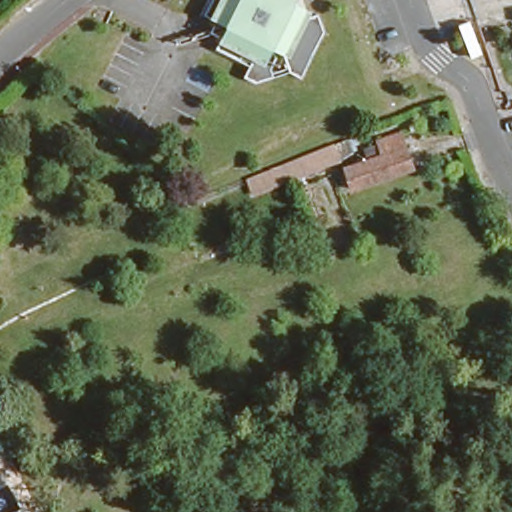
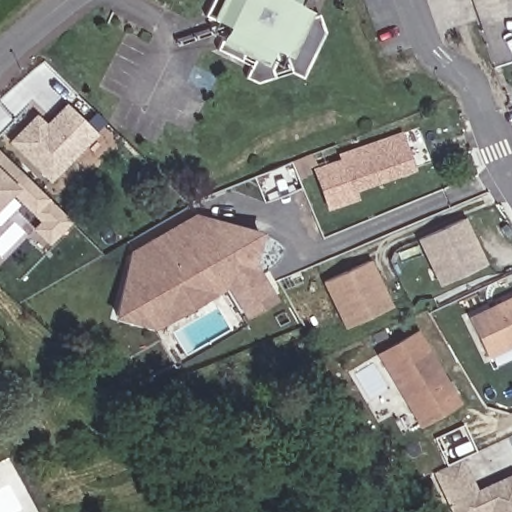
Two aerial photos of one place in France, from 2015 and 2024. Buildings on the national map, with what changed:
unchanged [(250,78),(242,69),(243,56),(212,39),(219,15),(202,10),(206,0),(319,0),(330,26),(297,74),(279,66),(273,73),(250,78)]
new [(49,126),(70,104),(102,135),(54,182),(7,142),(36,114),(49,126)]
demolished [(361,188),(351,168),(390,151),(385,138),(402,128),(417,162),(361,188)]
new [(342,159),(341,154),(403,132),(417,170),(357,191),(361,198),(329,209),(313,167),(342,159)]
demolished [(340,159),(252,192),(244,172),(332,136),(340,159)]
new [(56,242),(38,227),(47,218),(43,220),(17,194),(0,212),(0,153),(74,222),(56,242)]
new [(198,214),(268,232),(261,261),(282,299),(252,316),(232,287),(161,329),(120,315),(129,253),(198,214)]
new [(417,239),(466,216),(486,261),(438,283),(417,239)]
new [(323,283),(371,259),(392,304),(343,327),(323,283)]
new [(512,296),(512,346),(487,357),(468,316),(512,296)]
new [(417,330),(461,402),(418,426),(377,354),(417,330)]
new [(462,458),(476,489),(512,474),(512,512),(451,512),(432,472),(462,458)]

